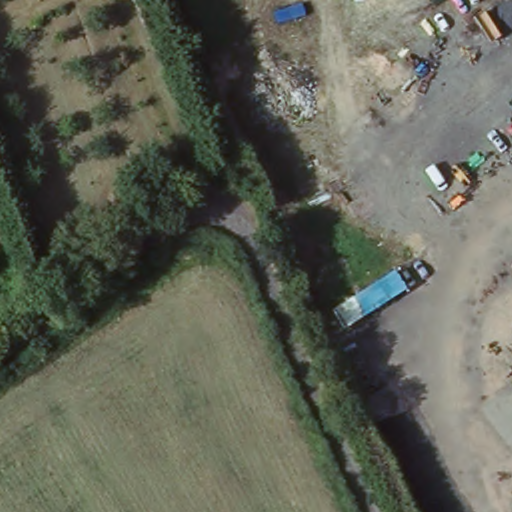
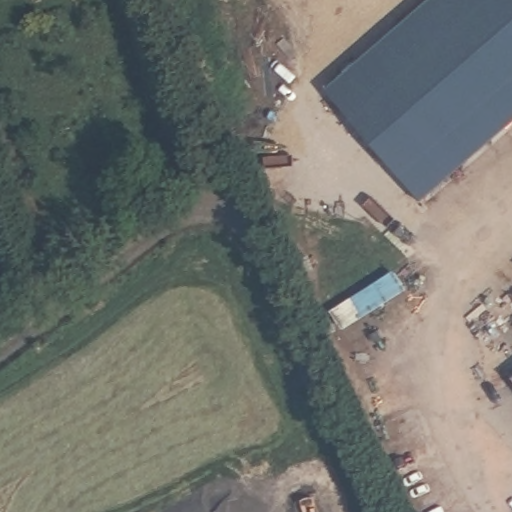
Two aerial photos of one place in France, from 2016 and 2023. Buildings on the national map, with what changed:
new [(426,0),(512,0),(512,119),(421,199),(326,87),(426,0)]

